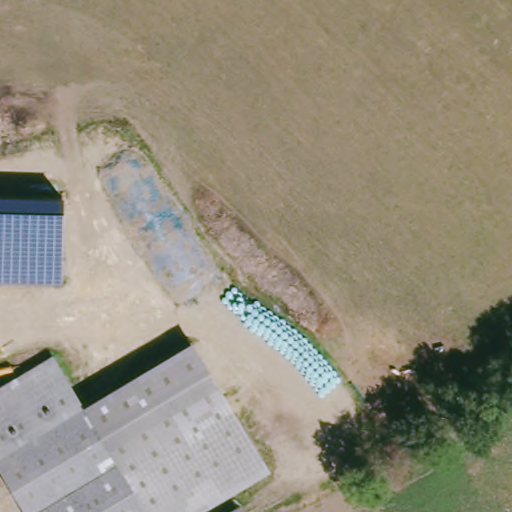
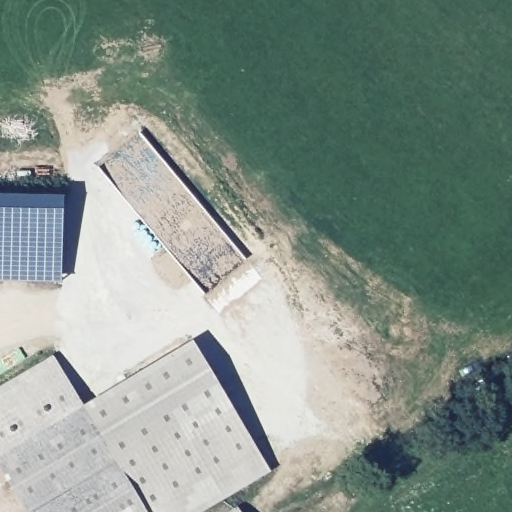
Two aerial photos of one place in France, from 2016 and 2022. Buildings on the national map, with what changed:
unchanged [(61,281),(0,280),(0,194),(62,195),(61,281)]
unchanged [(87,410),(193,346),(227,402),(120,464),(87,410)]
unchanged [(0,392),(56,359),(87,410),(2,461),(0,458),(0,392)]
unchanged [(204,512),(148,512),(120,464),(227,402),(271,472),(204,512)]
unchanged [(32,512),(2,461),(87,410),(120,464),(148,512),(32,512)]

